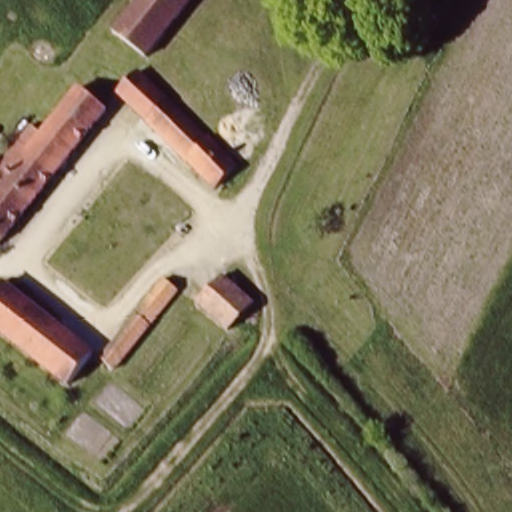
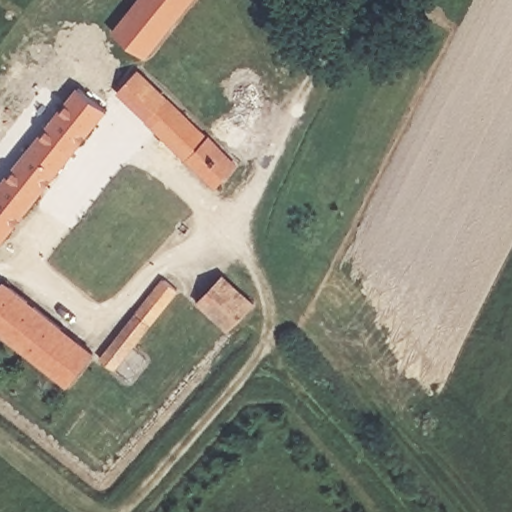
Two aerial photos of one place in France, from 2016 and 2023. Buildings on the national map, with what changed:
unchanged [(147,57),(110,29),(133,0),(192,0),(147,57)]
unchanged [(235,170),(215,190),(122,96),(141,74),(235,170)]
unchanged [(110,119),(0,244),(0,187),(10,176),(34,146),(75,97),(79,92),(110,119)]
unchanged [(160,276),(175,291),(107,368),(94,356),(160,276)]
unchanged [(196,308),(230,276),(250,298),(216,330),(196,308)]
unchanged [(60,390),(0,346),(0,287),(9,277),(97,346),(60,390)]

